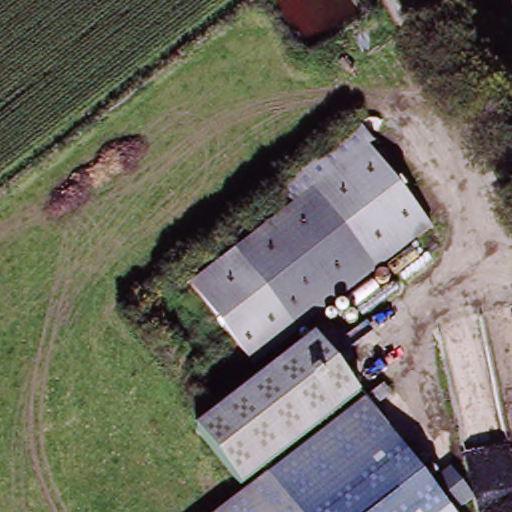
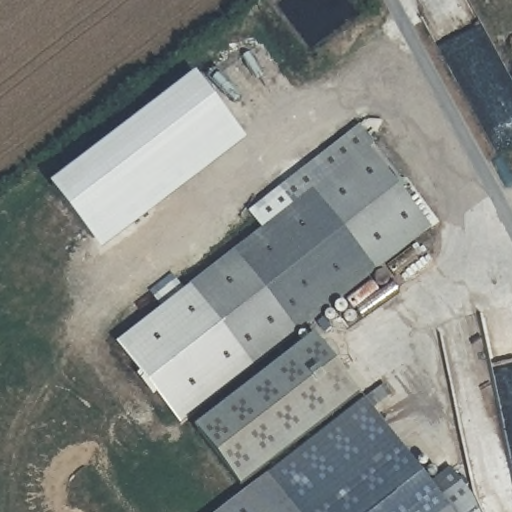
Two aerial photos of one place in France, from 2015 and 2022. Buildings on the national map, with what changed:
new [(196,69),(246,133),(107,240),(53,179),(196,69)]
unchanged [(373,145),(368,148),(432,229),(377,274),(313,193),(293,209),(279,190),(358,126),(373,145)]
unchanged [(231,258),(313,193),(377,274),(294,339),(231,258)]
unchanged [(231,258),(294,339),(251,368),(190,291),(231,258)]
new [(251,368),(181,420),(125,340),(190,291),(251,368)]
unchanged [(239,488),(195,431),(313,338),(357,395),(239,488)]
unchanged [(428,485),(448,469),(472,499),(460,512),(218,512),(363,401),(428,485)]

